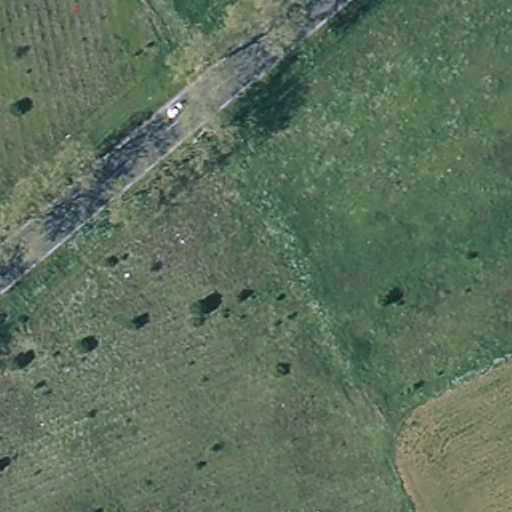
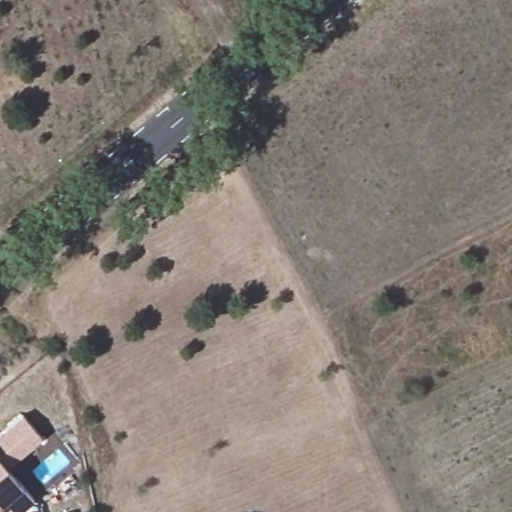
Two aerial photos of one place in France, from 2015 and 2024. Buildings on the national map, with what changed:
new [(42,436),(6,465),(34,498),(17,512),(6,512),(2,506),(0,505),(0,434),(23,414),(42,436)]
new [(2,506),(0,508),(0,505),(2,506)]

